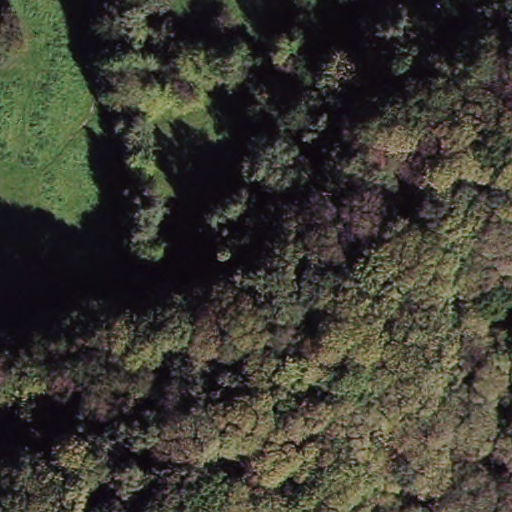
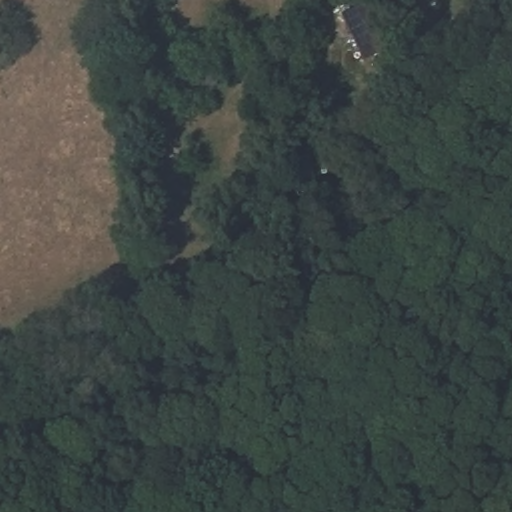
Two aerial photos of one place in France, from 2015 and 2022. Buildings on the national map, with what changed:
unchanged [(310,160),(312,186),(286,191),(285,163),(310,160)]

